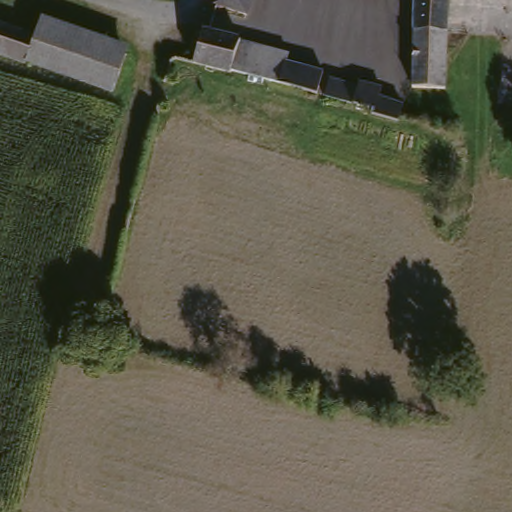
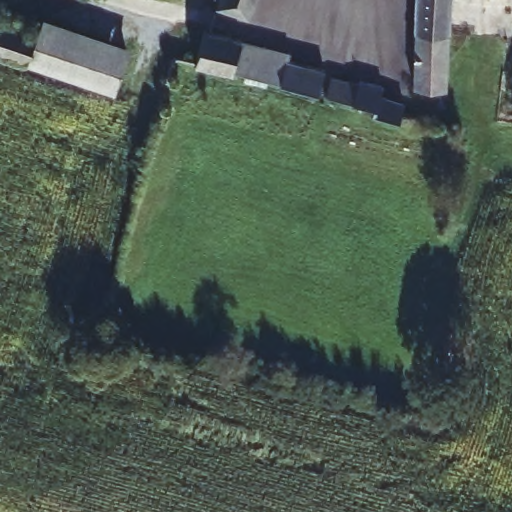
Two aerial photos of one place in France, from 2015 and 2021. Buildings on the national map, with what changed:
unchanged [(263,12),(259,11),(223,0),(267,0),(263,12)]
unchanged [(409,87),(415,0),(446,0),(440,89),(409,87)]
unchanged [(122,50),(109,90),(21,62),(30,35),(34,22),(122,50)]
unchanged [(30,35),(21,62),(0,56),(0,26),(30,35)]
unchanged [(265,82),(191,61),(201,29),(240,40),(286,54),(284,61),(327,74),(320,99),(265,82)]
unchanged [(384,93),(379,105),(377,114),(352,105),(354,100),(332,92),(340,69),(362,77),(360,85),(384,93)]

